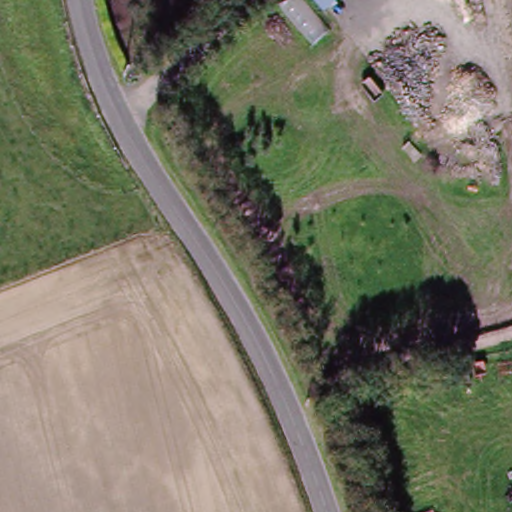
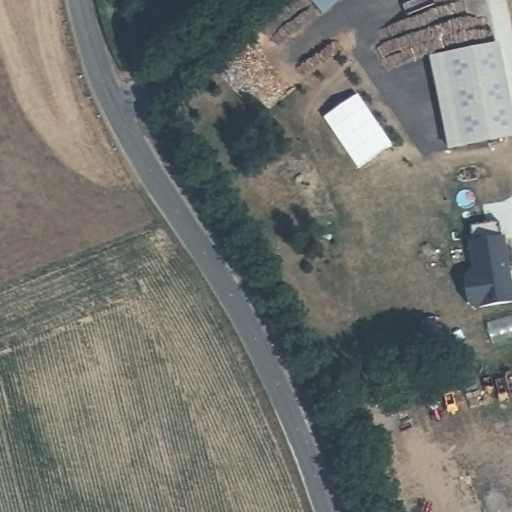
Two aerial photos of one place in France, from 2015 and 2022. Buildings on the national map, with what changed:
new [(325,12),(313,0),(338,0),(325,12)]
new [(512,137),(460,145),(446,56),(498,47),(512,131),(512,137)]
new [(357,96),(392,145),(360,166),(325,116),(357,96)]
new [(512,302),(472,308),(466,304),(462,279),(467,273),(473,272),(469,242),(471,242),(468,226),(497,221),(500,237),(502,237),(508,271),(505,272),(507,281),(510,281),(512,296),(512,302)]
demolished [(512,293),(512,304),(509,293),(512,293)]

